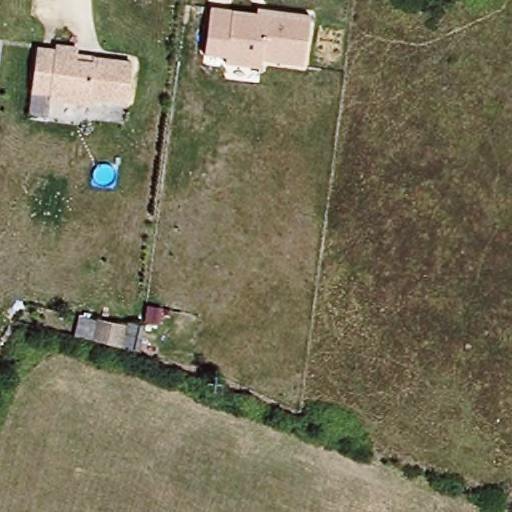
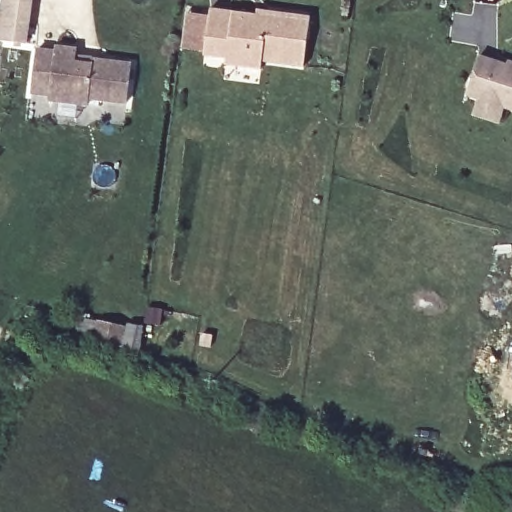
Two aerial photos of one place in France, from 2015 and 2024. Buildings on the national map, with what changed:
new [(0,0),(28,0),(20,51),(0,47),(0,0)]
unchanged [(257,9),(310,15),(304,67),(260,62),(260,70),(225,66),(226,59),(204,57),(203,55),(179,52),(184,13),(209,16),(209,9),(256,14),(257,9)]
unchanged [(121,100),(84,96),(83,102),(44,97),(47,79),(29,77),(33,48),(51,50),(52,45),(73,48),(71,56),(88,58),(127,62),(121,100)]
new [(512,111),(466,97),(478,54),(512,65),(512,111)]
unchanged [(115,340),(114,340),(91,335),(96,315),(119,320),(115,340)]

